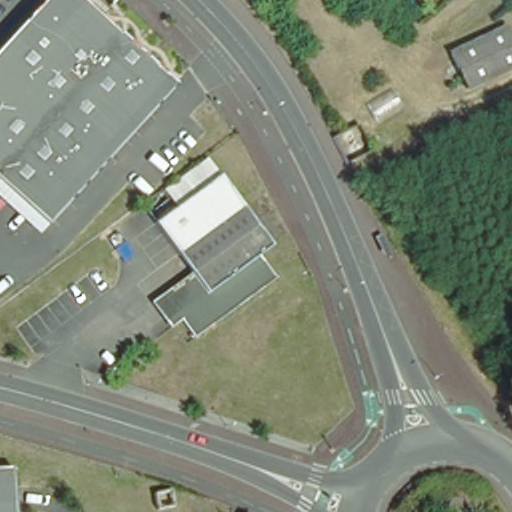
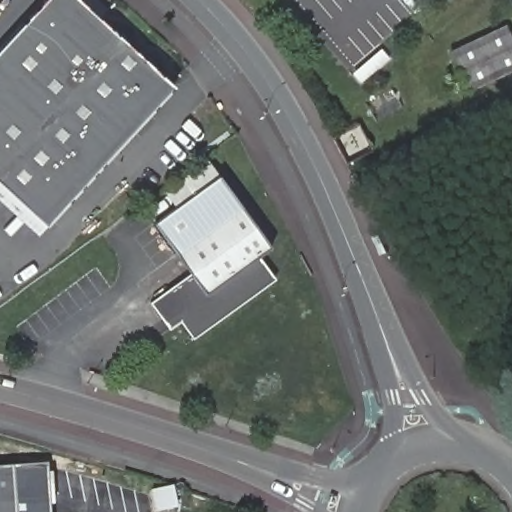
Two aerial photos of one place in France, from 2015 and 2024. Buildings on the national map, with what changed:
unchanged [(43,0),(74,0),(169,84),(45,227),(0,186),(0,46),(43,0)]
unchanged [(512,41),(512,71),(467,91),(451,54),(507,29),(512,41)]
unchanged [(333,139),(359,128),(370,153),(343,164),(333,139)]
unchanged [(174,205),(162,188),(206,157),(218,175),(174,205)]
unchanged [(152,220),(174,205),(218,175),(239,204),(173,252),(152,220)]
unchanged [(160,318),(147,301),(187,272),(173,252),(239,204),(268,246),(256,255),(271,277),(188,334),(177,319),(166,326),(160,318)]
new [(45,466),(48,512),(16,512),(14,471),(0,472),(0,468),(45,466)]
unchanged [(16,512),(0,512),(0,472),(14,471),(16,512)]

